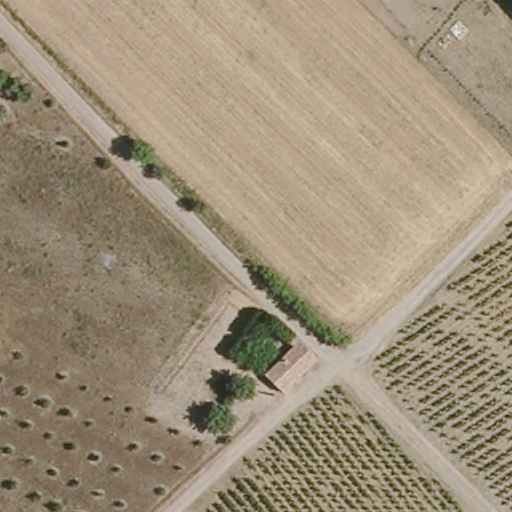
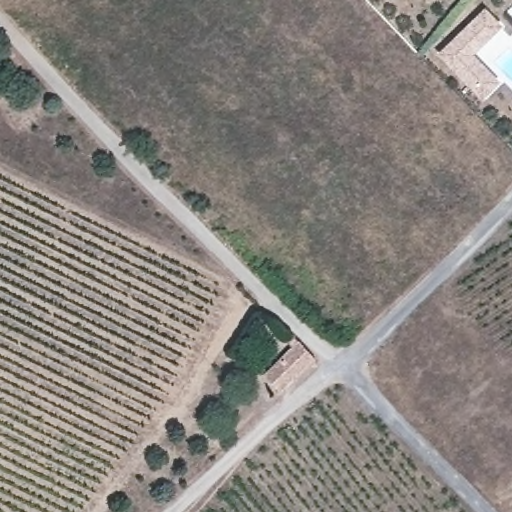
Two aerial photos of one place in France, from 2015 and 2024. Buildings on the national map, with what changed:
new [(438,53),(486,7),(503,25),(475,55),(501,81),(482,100),(438,53)]
unchanged [(295,347),(310,362),(277,394),(260,377),(293,346),(295,347)]

